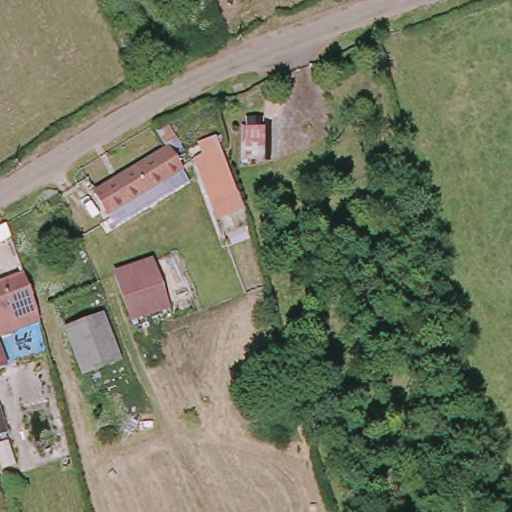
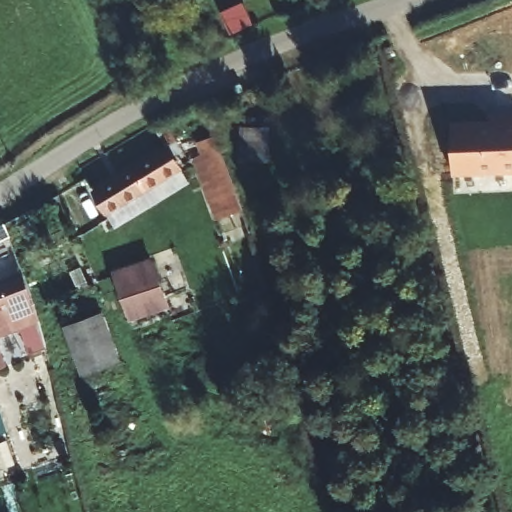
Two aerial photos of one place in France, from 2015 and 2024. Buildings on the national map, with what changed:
new [(490,117),(512,116),(512,173),(454,176),(452,124),(490,122),(490,117)]
unchanged [(242,202),(215,211),(195,151),(222,142),(242,202)]
unchanged [(185,169),(109,214),(98,193),(173,149),(185,169)]
new [(7,211),(10,227),(0,233),(0,215),(7,211)]
unchanged [(152,261),(168,306),(130,319),(125,306),(114,275),(152,261)]
unchanged [(39,323),(0,336),(0,280),(25,271),(39,323)]
unchanged [(100,310),(117,358),(79,371),(62,323),(100,310)]
unchanged [(4,364),(0,366),(0,353),(4,364)]

